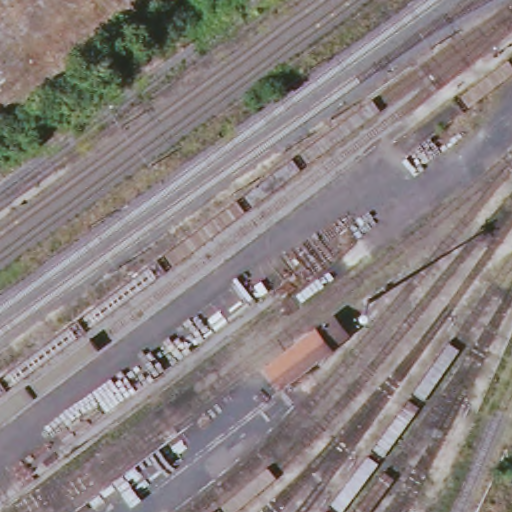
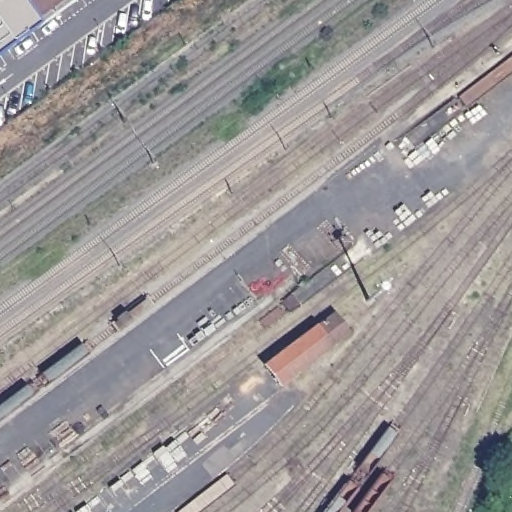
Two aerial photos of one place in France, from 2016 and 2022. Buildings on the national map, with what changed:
new [(0,54),(0,0),(74,0),(33,30),(0,54)]
unchanged [(330,311),(348,334),(281,386),(263,363),(330,311)]

